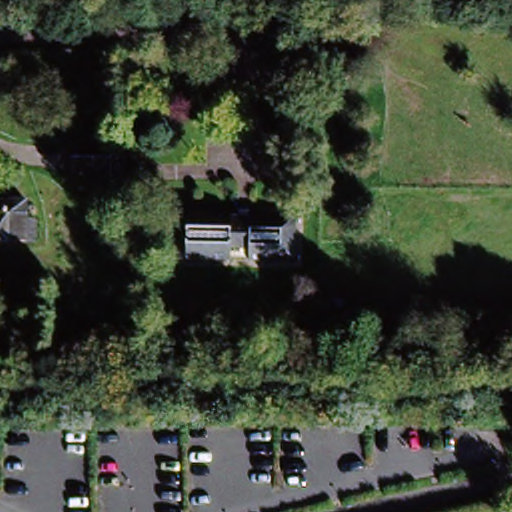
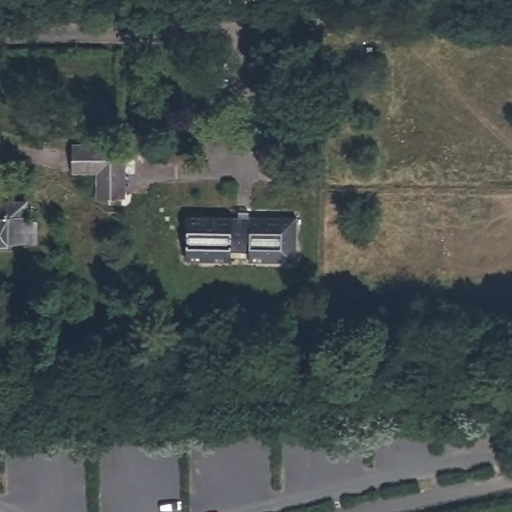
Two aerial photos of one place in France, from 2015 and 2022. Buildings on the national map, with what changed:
unchanged [(125,145),(125,200),(95,200),(95,170),(70,170),(71,144),(125,145)]
unchanged [(0,253),(0,199),(35,198),(34,252),(0,253)]
unchanged [(295,219),(294,256),(187,253),(189,214),(295,219)]

